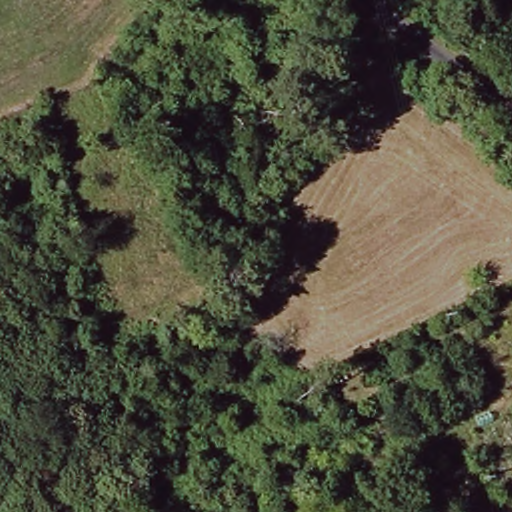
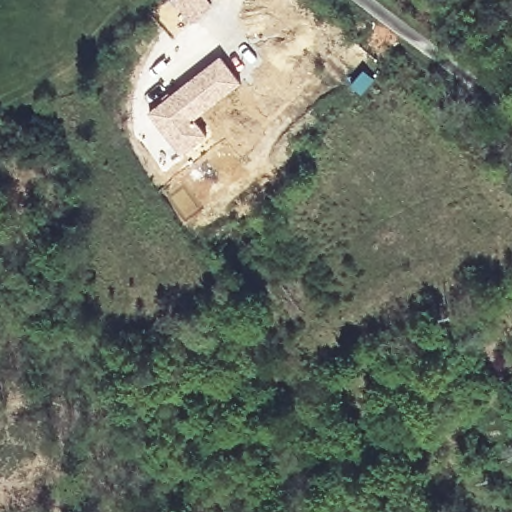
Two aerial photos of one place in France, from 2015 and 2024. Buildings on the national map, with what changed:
new [(166,0),(210,0),(213,5),(172,39),(151,12),(166,0)]
new [(221,54),(243,82),(196,118),(208,137),(180,157),(146,112),(221,54)]

